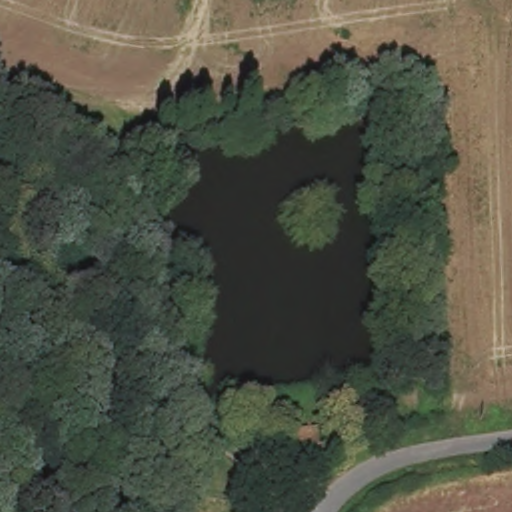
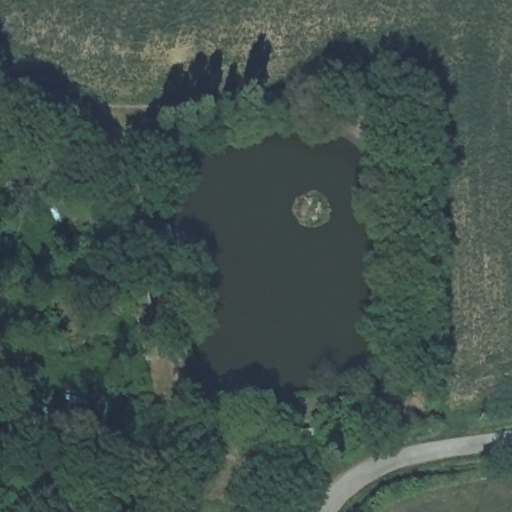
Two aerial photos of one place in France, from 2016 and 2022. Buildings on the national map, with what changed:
unchanged [(328,445),(287,449),(285,433),(325,429),(328,445)]

